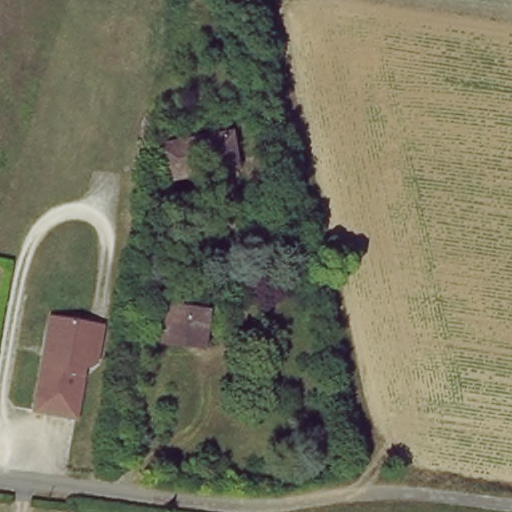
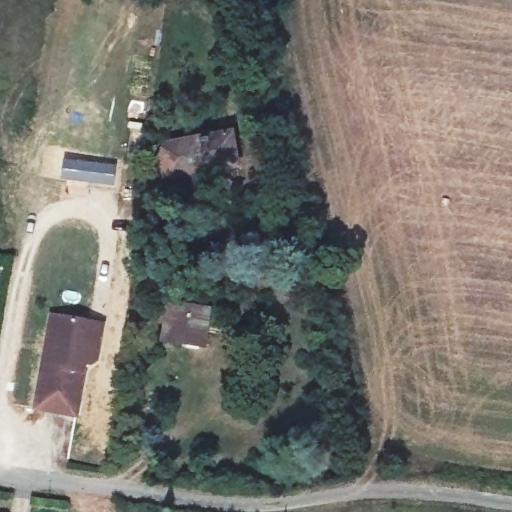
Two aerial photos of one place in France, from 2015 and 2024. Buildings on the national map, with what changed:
unchanged [(180,131),(232,119),(243,170),(191,183),(180,131)]
unchanged [(169,188),(156,137),(180,131),(191,183),(169,188)]
unchanged [(206,313),(202,344),(163,337),(167,306),(206,313)]
unchanged [(101,326),(97,348),(94,361),(87,365),(83,364),(72,416),(32,408),(41,363),(51,316),(68,319),(84,322),(101,326)]

